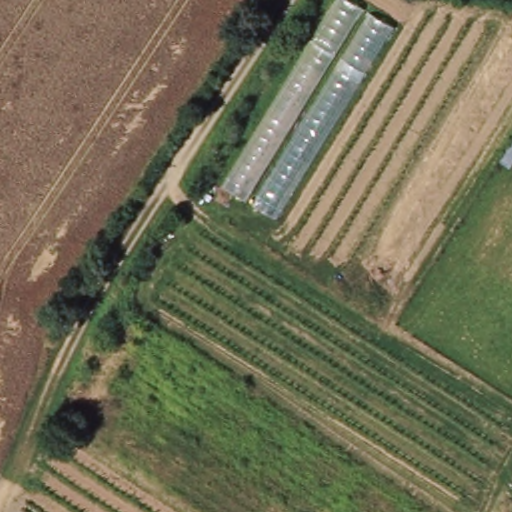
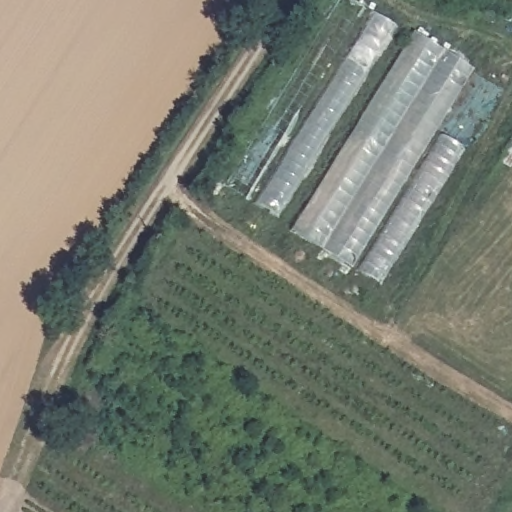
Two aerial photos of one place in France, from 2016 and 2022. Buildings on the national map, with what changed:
unchanged [(395,27),(275,218),(223,185),(335,0),(349,0),(395,27)]
new [(291,230),(413,32),(472,69),(350,268),(291,230)]

